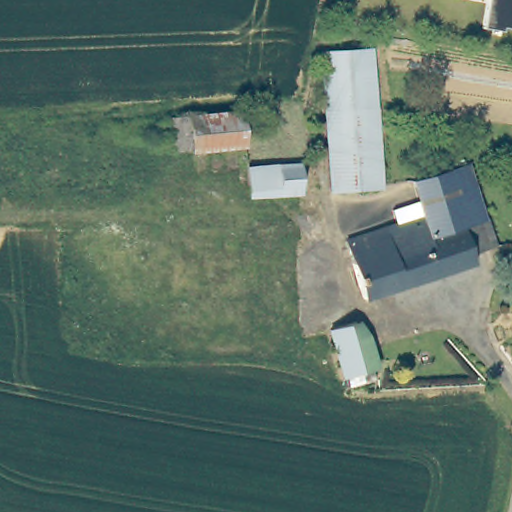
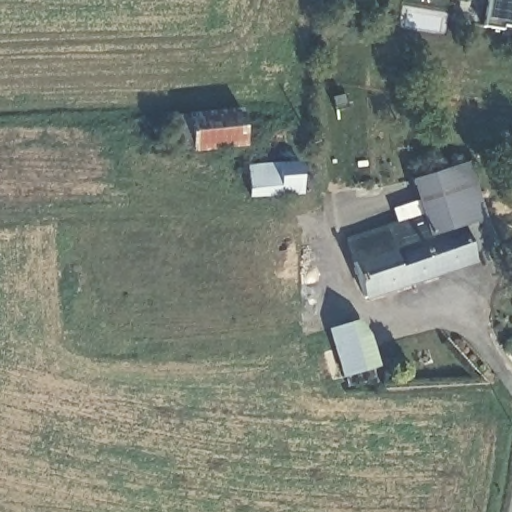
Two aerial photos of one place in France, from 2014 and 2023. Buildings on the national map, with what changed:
unchanged [(501,30),(485,26),(489,0),(512,0),(512,27),(502,25),(501,30)]
demolished [(370,45),(381,184),(335,188),(322,48),(370,45)]
unchanged [(237,107),(240,107),(244,143),(191,146),(190,111),(237,107)]
unchanged [(495,240),(471,250),(475,259),(365,296),(345,238),(396,220),(391,206),(418,197),(412,178),(465,159),(495,240)]
unchanged [(300,162),(302,189),(251,191),(247,163),(300,162)]
unchanged [(360,326),(375,372),(347,380),(341,376),(328,335),(360,326)]

